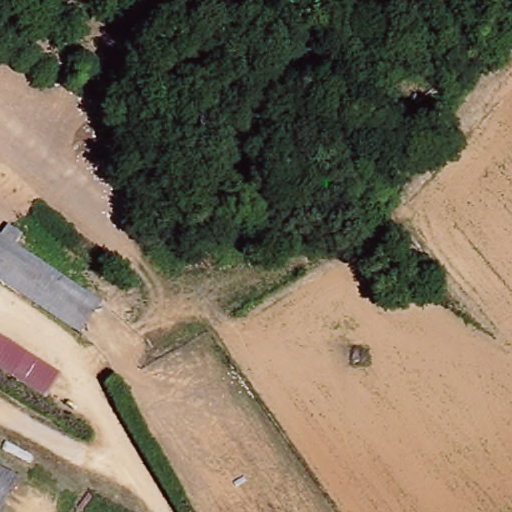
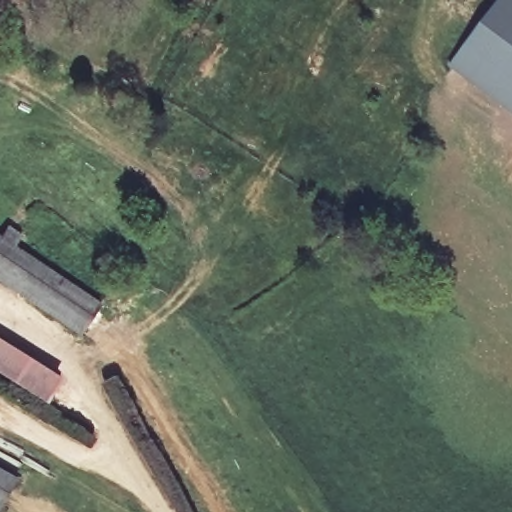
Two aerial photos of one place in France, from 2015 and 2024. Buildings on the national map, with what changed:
new [(512,0),(512,116),(447,69),(498,0),(512,0)]
unchanged [(0,279),(0,240),(103,301),(85,330),(0,279)]
unchanged [(0,365),(0,340),(57,372),(50,385),(46,392),(0,365)]
unchanged [(0,470),(15,479),(0,507),(0,470)]

